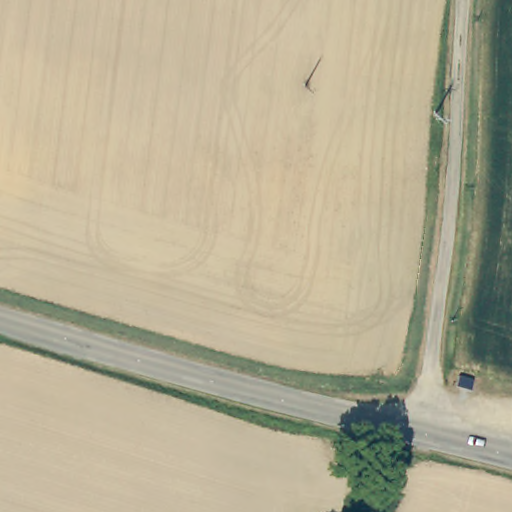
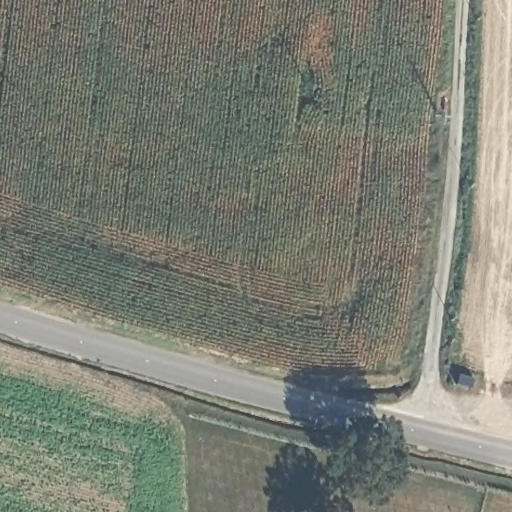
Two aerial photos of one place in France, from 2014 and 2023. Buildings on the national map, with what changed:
[]

